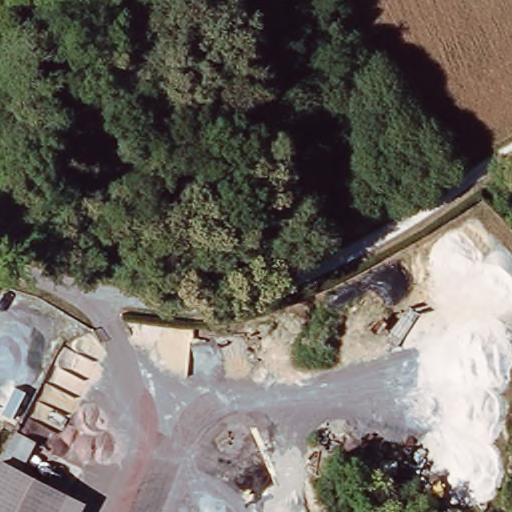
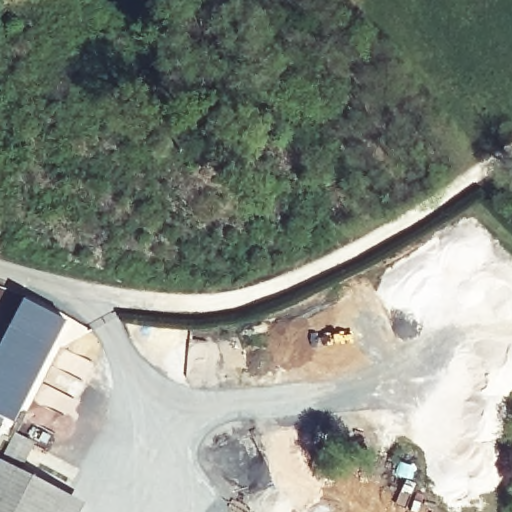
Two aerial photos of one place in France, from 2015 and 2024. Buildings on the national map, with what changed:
new [(67,320),(13,423),(0,416),(0,342),(23,298),(67,320)]
unchanged [(77,512),(0,512),(0,460),(0,459),(82,502),(77,512)]

